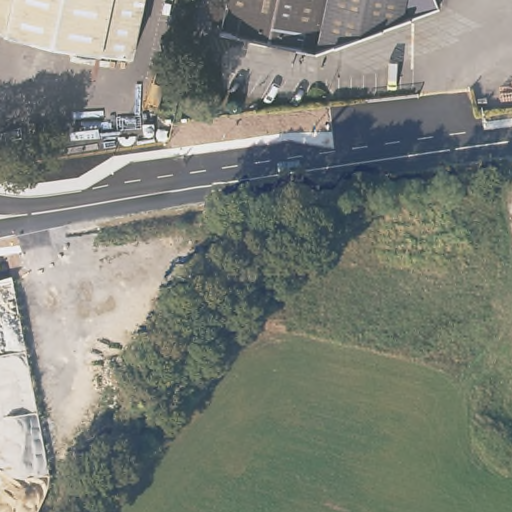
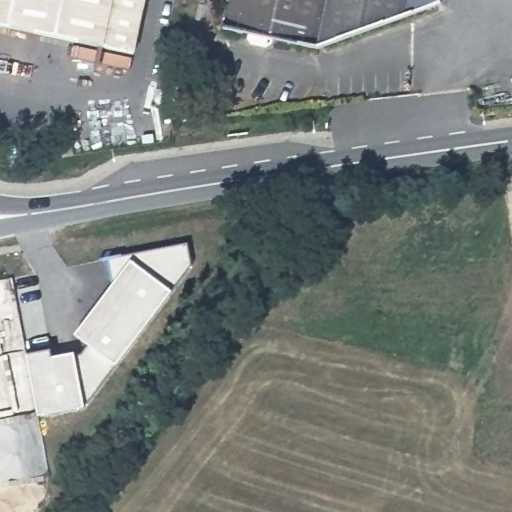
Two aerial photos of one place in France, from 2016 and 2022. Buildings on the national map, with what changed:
unchanged [(131,55),(0,26),(0,0),(143,0),(131,55)]
unchanged [(319,42),(227,27),(233,0),(399,0),(388,20),(319,42)]
unchanged [(440,1),(388,20),(399,0),(440,0),(440,1)]
new [(187,265),(166,287),(172,291),(114,365),(83,408),(36,417),(25,353),(46,348),(49,359),(73,354),(88,345),(74,335),(111,283),(106,259),(186,244),(187,265)]
demolished [(114,345),(45,359),(39,321),(106,310),(114,345)]

